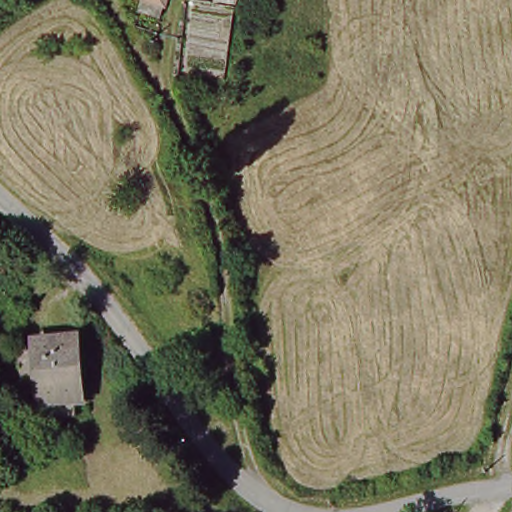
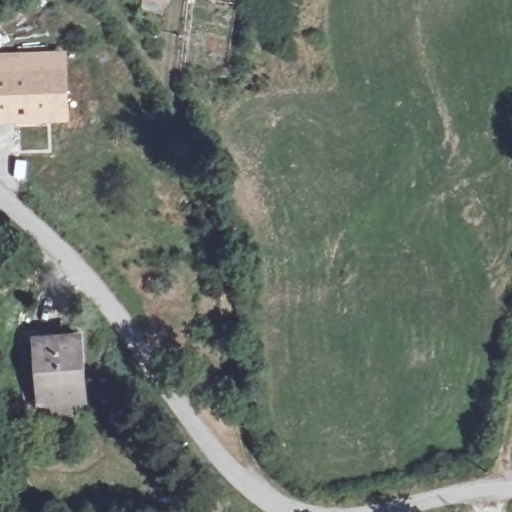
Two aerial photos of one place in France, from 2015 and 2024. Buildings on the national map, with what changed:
unchanged [(138,23),(143,0),(169,0),(161,29),(138,23)]
new [(0,54),(66,51),(70,122),(0,125),(0,54)]
unchanged [(81,344),(87,399),(46,400),(37,346),(81,344)]

